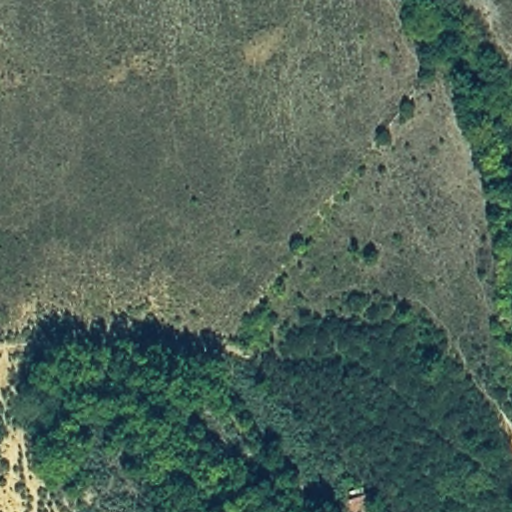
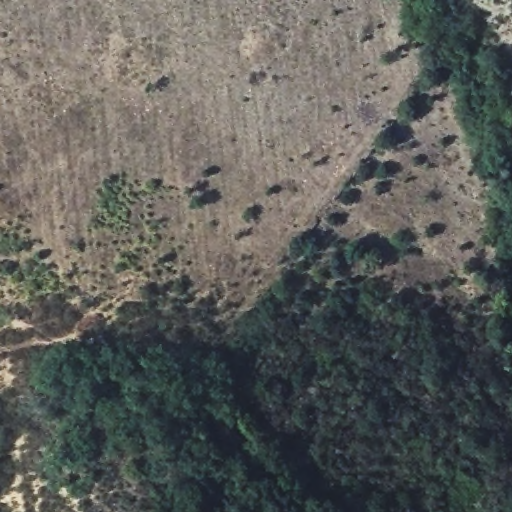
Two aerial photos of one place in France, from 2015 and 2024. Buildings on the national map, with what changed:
unchanged [(352,500),(374,493),(379,512),(355,512),(352,500)]

